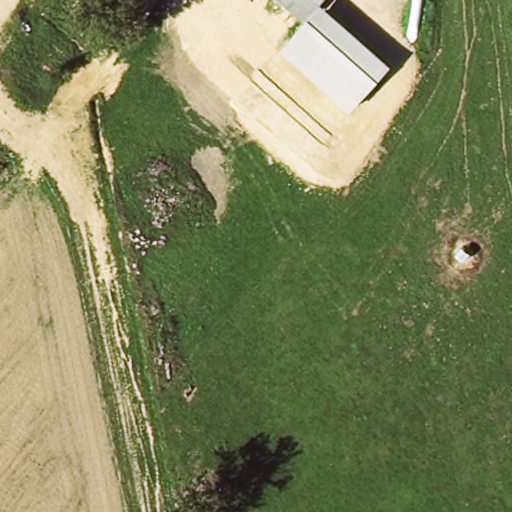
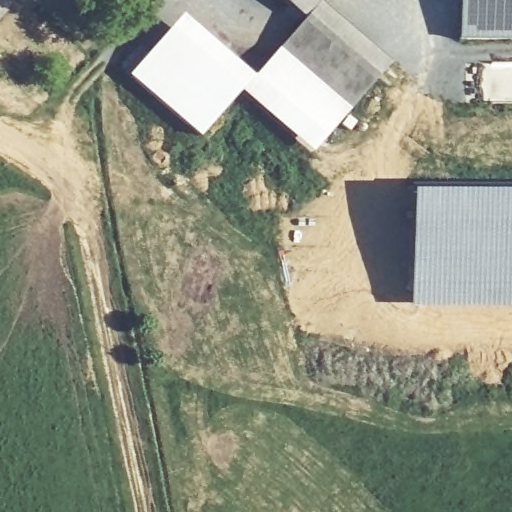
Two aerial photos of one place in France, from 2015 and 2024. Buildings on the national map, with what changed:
unchanged [(287,0),(295,0),(292,4),(287,0)]
unchanged [(307,18),(292,4),(295,0),(324,0),(307,18)]
new [(456,42),(456,0),(512,0),(512,42),(456,42)]
unchanged [(390,65),(348,111),(279,49),(307,18),(320,5),(390,65)]
new [(240,92),(197,140),(126,79),(180,18),(251,80),(240,92)]
new [(310,154),(240,92),(279,49),(348,111),(310,154)]
new [(408,187),(440,188),(441,192),(512,193),(512,309),(408,308),(408,187)]
new [(221,260),(205,306),(173,296),(190,250),(221,260)]

